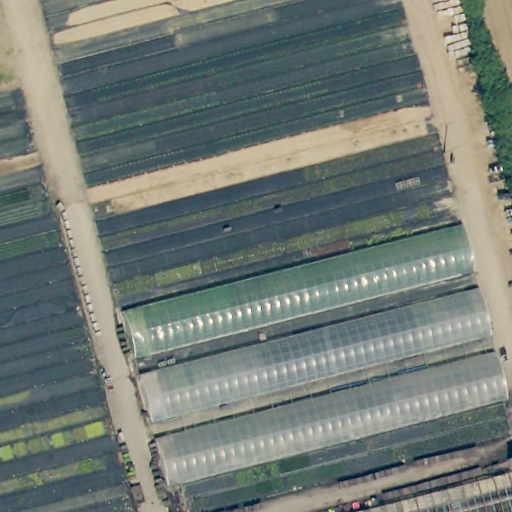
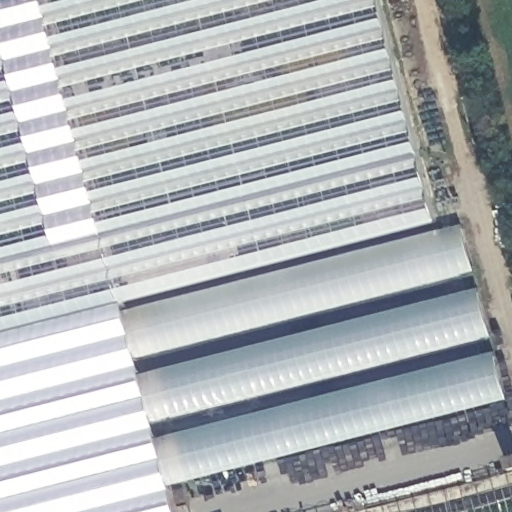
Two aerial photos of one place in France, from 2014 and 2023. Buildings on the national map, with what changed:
new [(379,0),(422,160),(104,240),(0,266),(0,0),(379,0)]
new [(164,484),(171,512),(0,512),(0,266),(104,240),(422,160),(438,222),(120,303),(123,314),(164,484)]
unchanged [(151,365),(180,480),(164,484),(123,314),(458,229),(473,284),(151,365)]
unchanged [(473,284),(504,395),(180,480),(151,365),(473,284)]
unchanged [(512,512),(346,512),(512,471),(512,512)]

